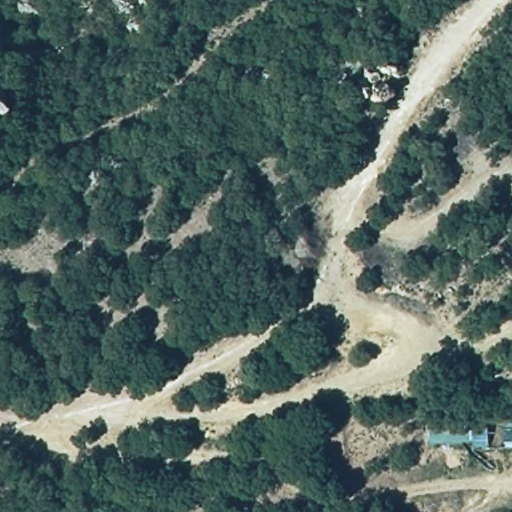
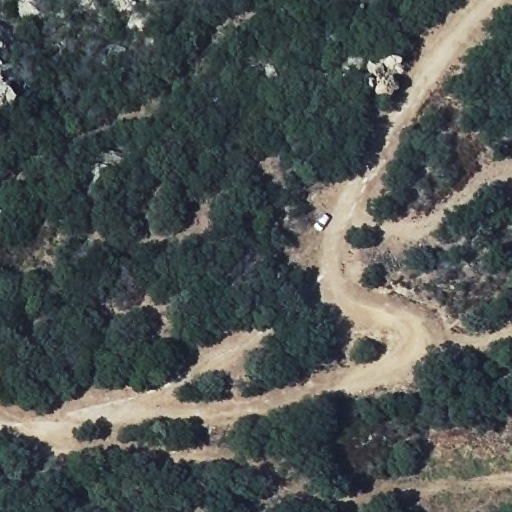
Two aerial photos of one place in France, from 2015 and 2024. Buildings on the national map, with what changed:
unchanged [(430,420),(485,420),(512,420),(512,448),(481,448),(430,448),(430,420)]

